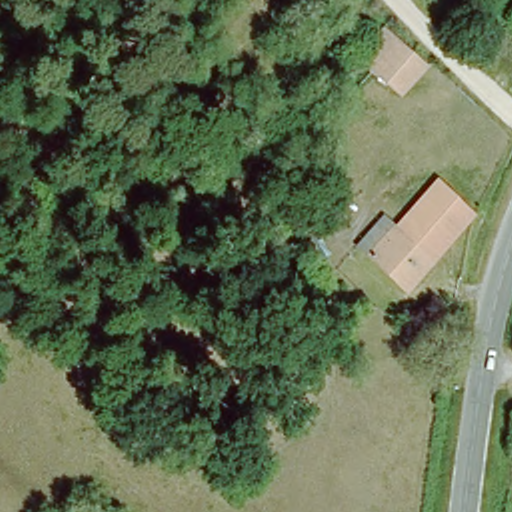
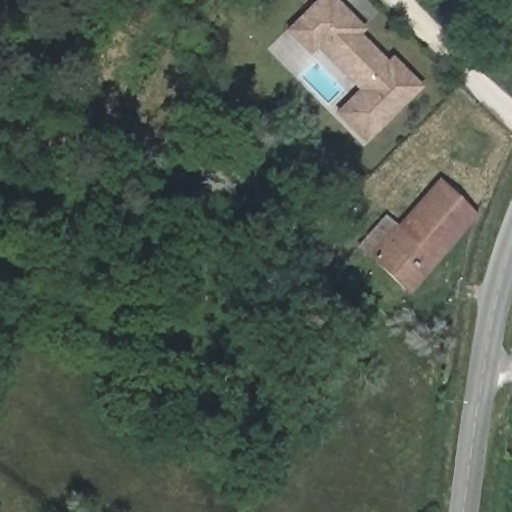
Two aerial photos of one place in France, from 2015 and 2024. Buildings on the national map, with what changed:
new [(362,144),(331,111),(355,89),(314,46),(306,55),(282,30),(311,0),(336,0),(363,28),(358,33),(383,60),(390,54),(422,86),(362,144)]
demolished [(426,66),(400,94),(380,76),(362,94),(347,81),(344,78),(388,31),(426,66)]
unchanged [(307,208),(293,197),(320,165),(323,167),(328,171),(333,176),(328,182),(319,193),(307,208)]
unchanged [(407,289),(357,245),(382,218),(393,228),(433,184),(471,217),(407,289)]

